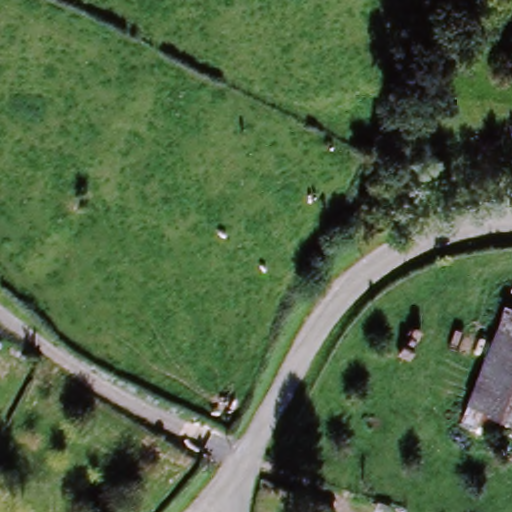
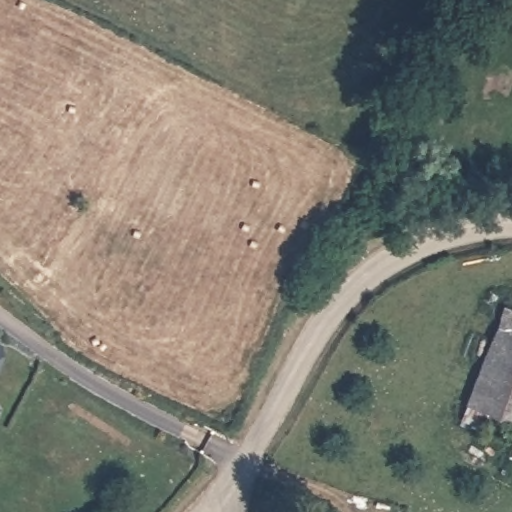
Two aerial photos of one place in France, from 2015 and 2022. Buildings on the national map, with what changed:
unchanged [(504,301),(512,304),(512,430),(463,408),(504,301)]

